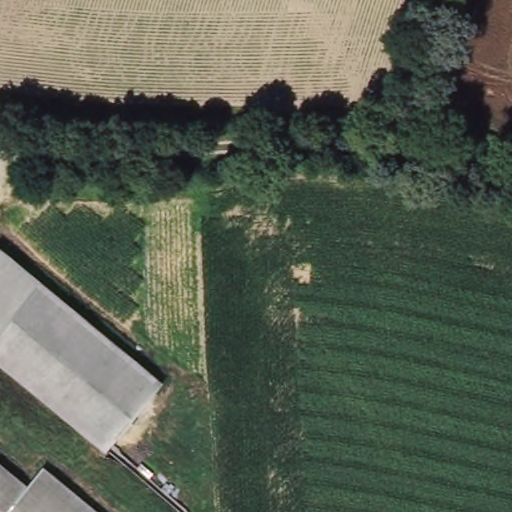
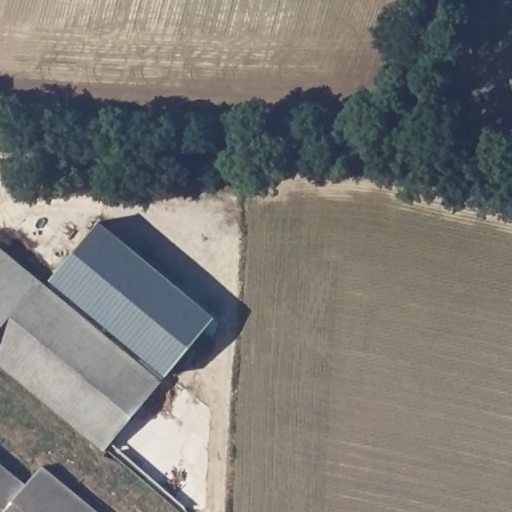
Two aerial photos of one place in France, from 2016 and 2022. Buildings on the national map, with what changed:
new [(100,221),(216,318),(168,375),(52,279),(100,221)]
unchanged [(156,388),(131,418),(101,455),(0,370),(0,257),(156,388)]
unchanged [(30,479),(46,460),(109,512),(0,512),(0,454),(30,479)]

